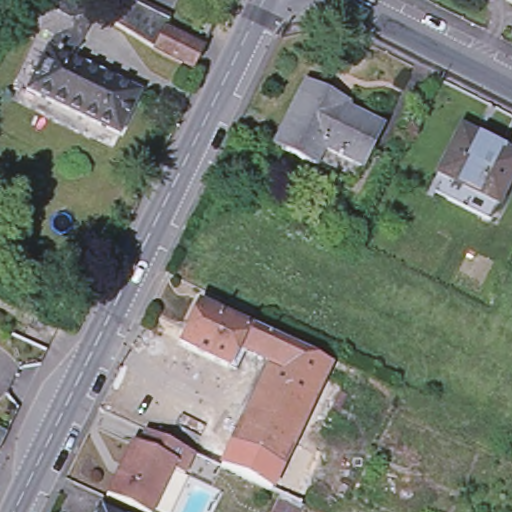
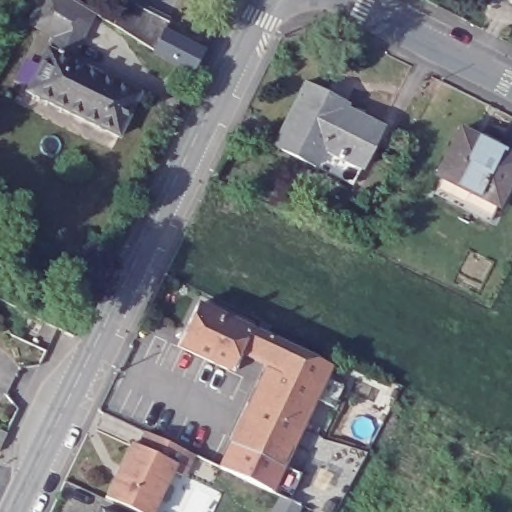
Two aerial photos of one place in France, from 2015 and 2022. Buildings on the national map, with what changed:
unchanged [(72,60),(141,94),(120,136),(28,91),(49,48),(51,50),(57,37),(30,24),(41,0),(78,0),(95,11),(72,60)]
unchanged [(122,0),(128,0),(167,19),(162,29),(201,48),(192,67),(192,68),(155,49),(112,21),(122,0)]
unchanged [(360,168),(322,149),(314,166),(274,146),(304,86),(328,97),(326,102),(380,129),(360,168)]
unchanged [(434,190),(442,174),(436,171),(459,125),(495,143),(494,145),(512,154),(512,169),(497,201),(489,216),(446,195),(434,190)]
unchanged [(303,419),(252,395),(268,362),(243,351),(235,368),(228,365),(228,367),(177,343),(197,302),(247,326),(279,340),(329,364),(303,419)]
unchanged [(231,438),(217,432),(228,409),(242,416),(252,395),(303,419),(293,440),(282,463),(231,440),(231,438)]
unchanged [(110,498),(136,445),(142,447),(149,433),(197,456),(188,477),(177,472),(156,512),(139,512),(110,498)]
unchanged [(282,463),(270,487),(219,463),(231,440),(282,463)]
unchanged [(271,510),(280,492),(270,487),(282,463),(293,440),(321,453),(298,501),(292,512),(275,512),(271,510)]
unchanged [(105,511),(107,512),(104,512),(105,511)]

